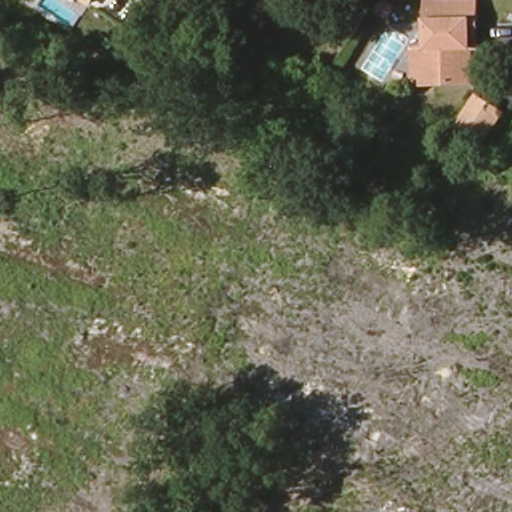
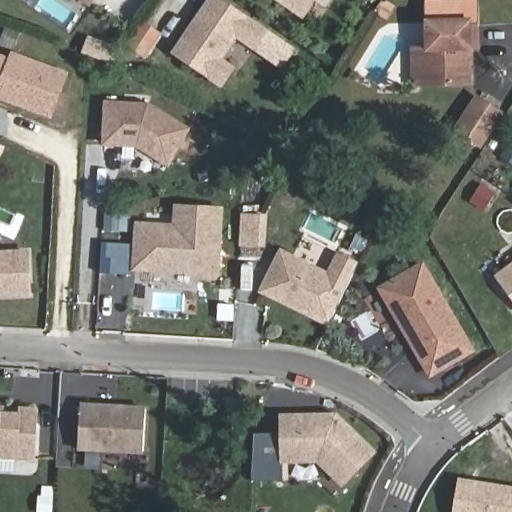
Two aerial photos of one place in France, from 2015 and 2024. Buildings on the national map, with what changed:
unchanged [(94,0),(90,6),(80,0),(94,0)]
new [(224,0),(270,31),(256,51),(237,39),(224,59),(236,67),(222,88),(170,52),(206,0),(224,0)]
new [(274,0),(316,0),(304,19),(274,0)]
unchanged [(416,49),(427,48),(426,3),(476,2),(475,27),(474,47),(463,47),(464,80),(426,81),(415,81),(416,49)]
new [(0,100),(0,54),(9,57),(11,51),(69,72),(53,119),(0,100)]
new [(169,167),(135,148),(103,147),(104,100),(148,102),(191,128),(169,167)]
unchanged [(478,102),(498,114),(482,138),(480,140),(461,130),(478,102)]
new [(220,277),(132,271),(135,220),(173,223),(175,203),(224,207),(220,277)]
new [(246,217),(264,218),(263,246),(245,245),(246,217)]
new [(328,325),(258,292),(280,246),(327,271),(337,252),(358,263),(328,325)]
new [(0,298),(0,250),(31,249),(33,296),(0,298)]
new [(431,379),(377,288),(424,260),(477,351),(431,379)]
new [(512,262),(512,299),(494,275),(512,262)]
new [(79,451),(81,402),(147,406),(144,455),(79,451)]
new [(0,459),(0,405),(6,405),(6,410),(19,411),(19,405),(40,406),(37,461),(0,459)]
new [(342,487),(316,463),(281,464),(279,413),(337,412),(377,451),(342,487)]
new [(512,492),(512,512),(458,512),(463,484),(512,492)]

